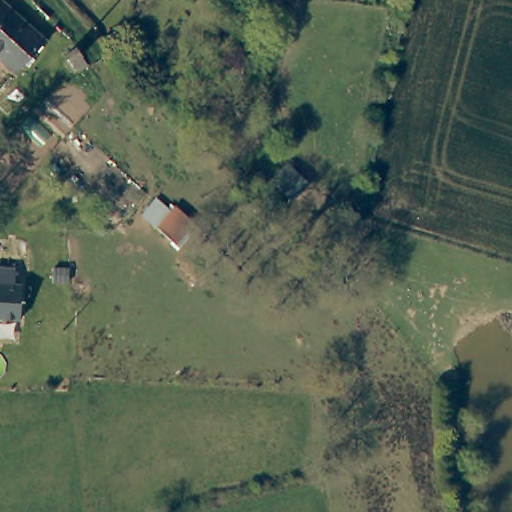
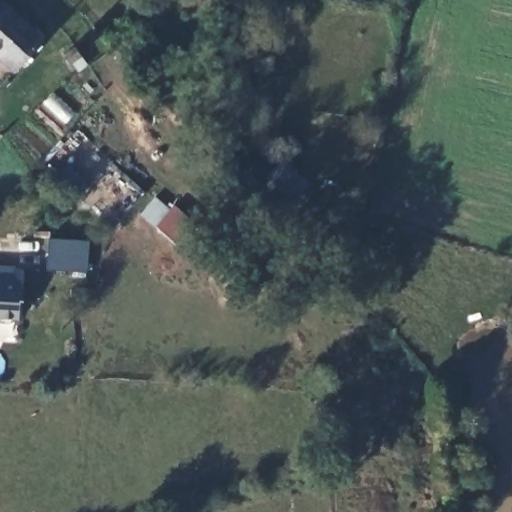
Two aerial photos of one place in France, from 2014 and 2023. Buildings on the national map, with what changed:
unchanged [(15,72),(0,59),(0,1),(44,41),(15,72)]
unchanged [(83,55),(72,61),(67,54),(78,47),(83,55)]
unchanged [(174,244),(139,213),(151,198),(166,212),(172,206),(193,223),(190,225),(174,244)]
new [(47,238),(87,242),(84,273),(44,269),(47,238)]
unchanged [(0,264),(13,265),(10,277),(25,283),(20,324),(0,320),(0,264)]

